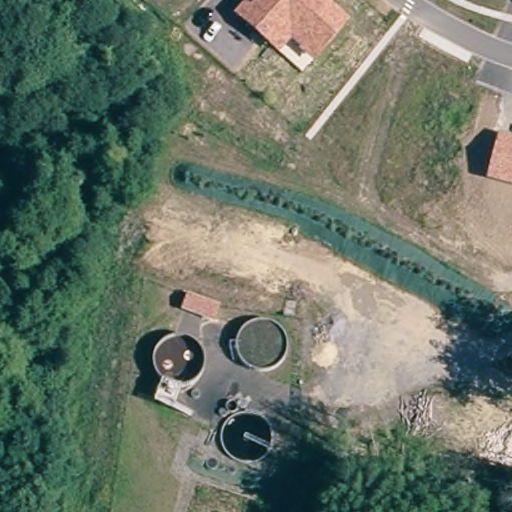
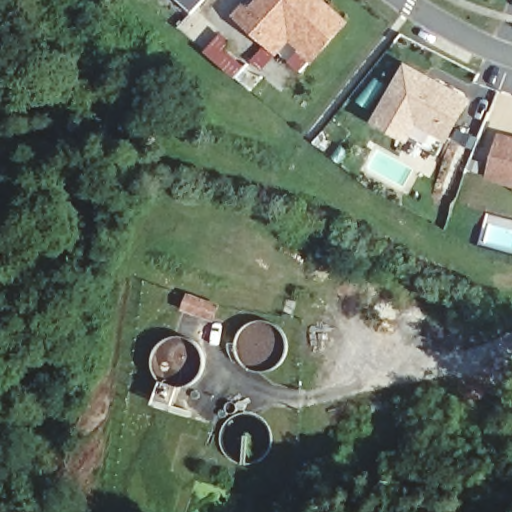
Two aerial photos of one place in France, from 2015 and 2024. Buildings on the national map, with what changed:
unchanged [(279,56),(233,15),(244,2),(250,7),(256,0),(326,0),(347,18),(312,60),(292,41),(279,56)]
new [(420,127),(411,141),(374,122),(407,63),(475,98),(449,142),(420,127)]
unchanged [(512,135),(512,186),(487,179),(498,131),(512,135)]
unchanged [(188,292),(222,304),(215,322),(182,311),(188,292)]
unchanged [(180,387),(174,410),(156,404),(162,381),(180,387)]

